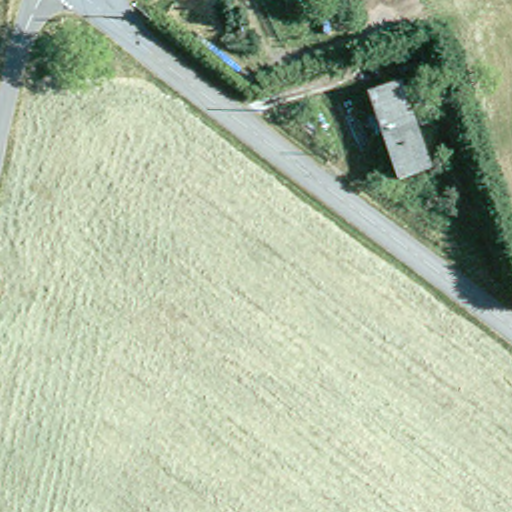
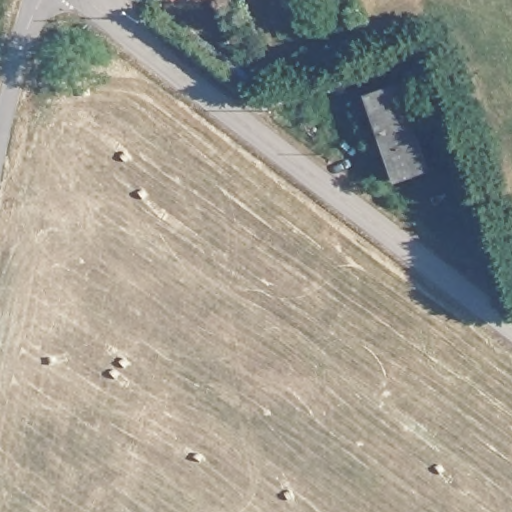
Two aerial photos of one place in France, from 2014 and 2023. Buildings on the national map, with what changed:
unchanged [(428,164),(398,172),(370,88),(399,78),(428,164)]

